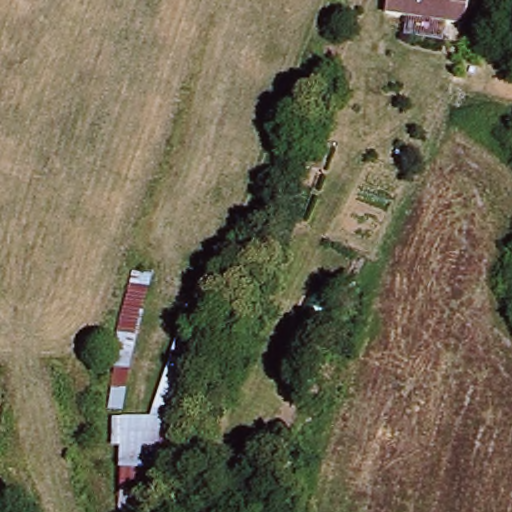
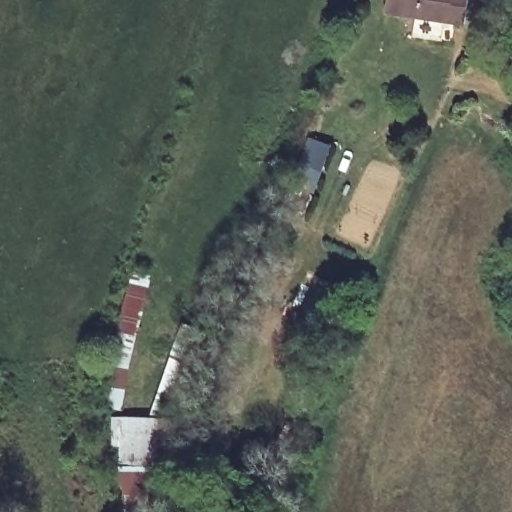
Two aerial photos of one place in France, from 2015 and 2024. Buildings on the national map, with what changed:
unchanged [(468,24),(389,7),(391,0),(473,0),(468,24)]
unchanged [(125,412),(107,412),(114,356),(135,273),(155,277),(132,362),(125,412)]
unchanged [(151,421),(178,342),(200,351),(180,425),(171,512),(122,512),(120,420),(151,421)]

